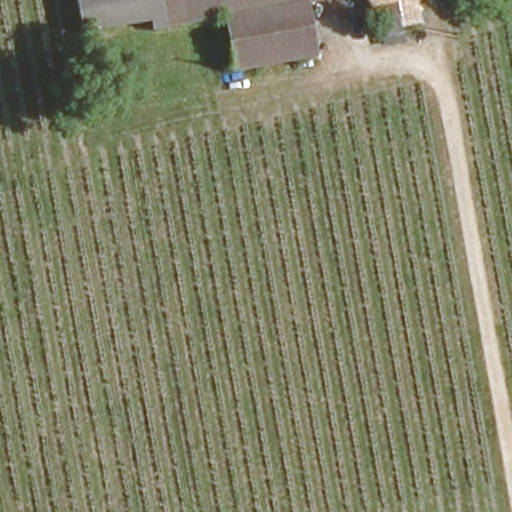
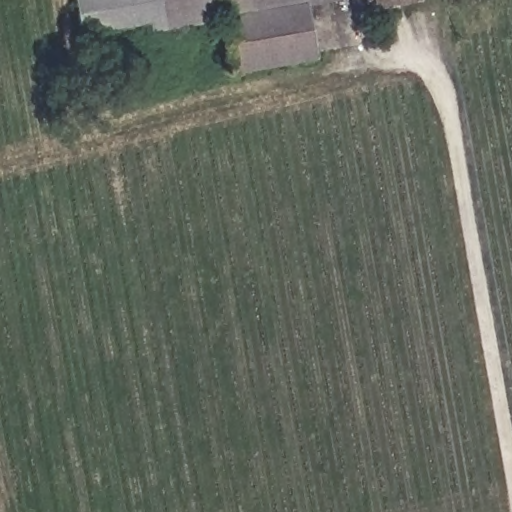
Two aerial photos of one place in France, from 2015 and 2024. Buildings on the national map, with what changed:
unchanged [(315,51),(231,68),(215,16),(146,30),(144,19),(71,31),(67,0),(305,0),(304,0),(315,51)]
unchanged [(363,0),(387,0),(365,5),(363,0)]

